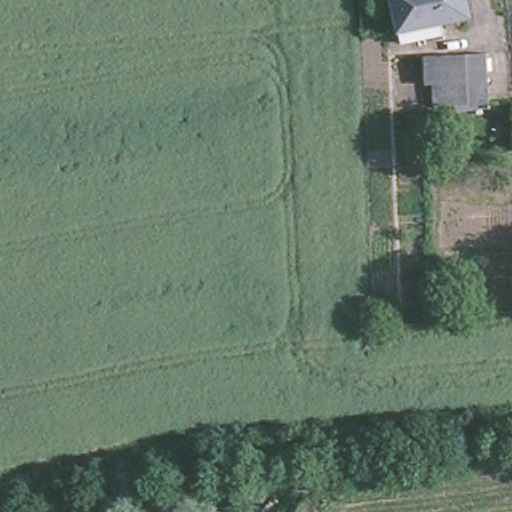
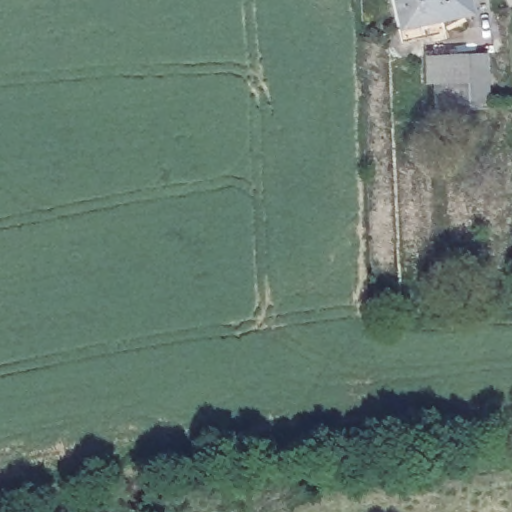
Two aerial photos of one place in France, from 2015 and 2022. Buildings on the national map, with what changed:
unchanged [(397,31),(391,0),(467,0),(470,17),(439,23),(443,36),(400,44),(397,31)]
unchanged [(424,88),(423,57),(447,57),(465,57),(486,57),(488,104),(468,104),(449,104),(433,105),(432,89),(424,88)]

